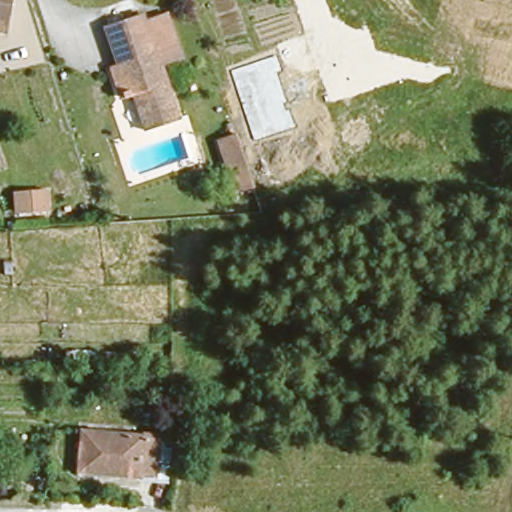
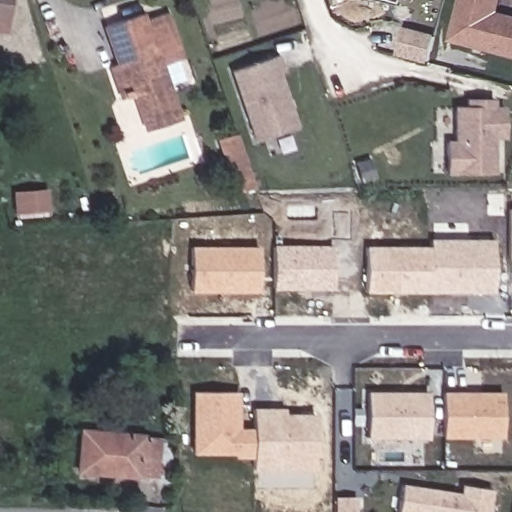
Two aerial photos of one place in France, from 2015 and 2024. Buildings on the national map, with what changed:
unchanged [(6,24),(0,23),(0,0),(9,0),(6,24)]
new [(460,0),(502,0),(499,12),(512,15),(512,57),(450,41),(460,0)]
unchanged [(106,60),(115,56),(125,53),(117,32),(109,36),(102,16),(134,7),(136,15),(160,9),(176,53),(160,59),(178,107),(146,119),(135,81),(124,85),(116,87),(106,60)]
new [(404,30),(433,37),(426,63),(397,55),(404,30)]
new [(278,73),(296,125),(252,140),(230,71),(277,55),(283,72),(278,73)]
new [(505,139),(493,140),(495,174),(445,175),(445,140),(453,140),(452,105),(463,106),(463,99),(492,99),(493,106),(504,106),(505,139)]
unchanged [(235,125),(249,161),(225,170),(215,132),(235,125)]
new [(49,212),(13,215),(12,191),(47,189),(49,212)]
new [(512,209),(512,259),(507,259),(508,209),(512,209)]
new [(492,239),(492,293),(365,295),(365,247),(428,246),(428,239),(492,239)]
new [(258,245),(258,293),(190,292),(190,245),(258,245)]
new [(271,290),(272,245),(332,245),(331,290),(271,290)]
new [(251,458),(233,457),(233,454),(193,454),(192,391),(237,391),(238,427),(252,427),(251,458)]
new [(427,391),(427,440),(366,440),(366,391),(427,391)]
new [(442,438),(442,391),(501,391),(500,437),(442,438)]
new [(251,458),(252,427),(252,408),(284,408),(284,413),(315,414),(313,469),(252,470),(251,458)]
unchanged [(157,470),(140,468),(140,471),(80,466),(83,428),(160,435),(157,470)]
new [(492,490),(488,512),(397,512),(401,483),(460,492),(461,485),(492,490)]

